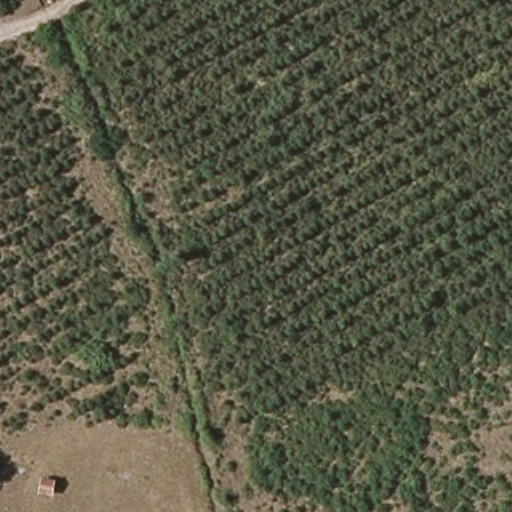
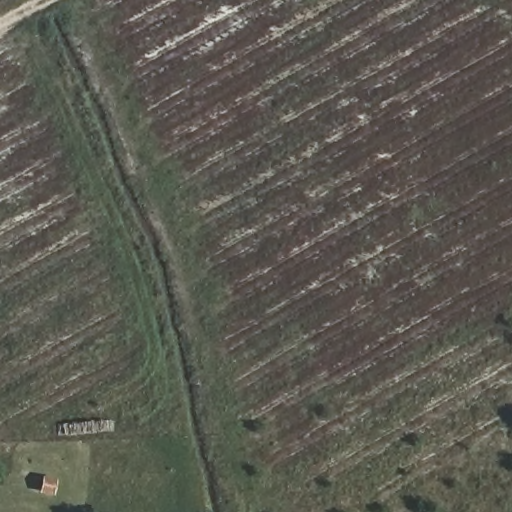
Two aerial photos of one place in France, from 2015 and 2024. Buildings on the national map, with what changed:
unchanged [(0,403),(0,388),(5,391),(0,403)]

